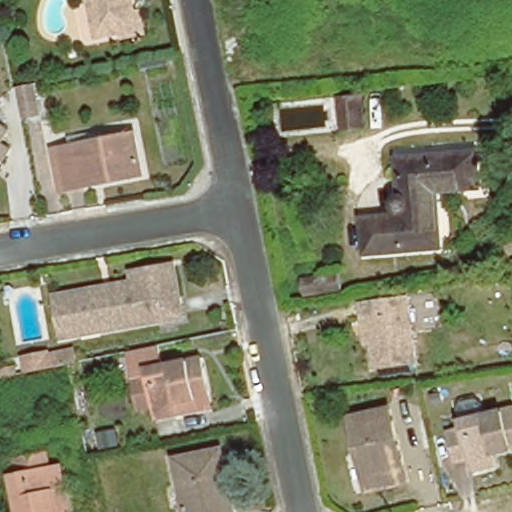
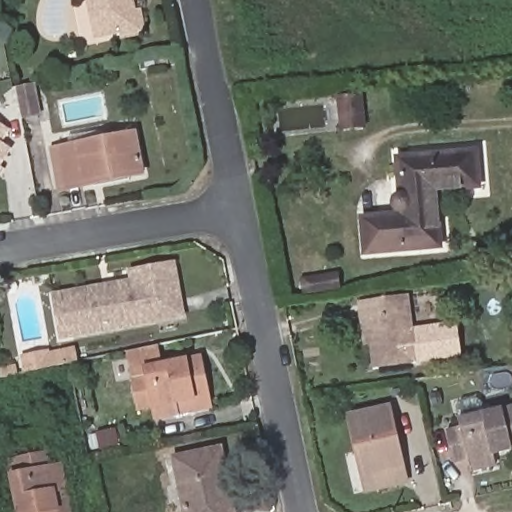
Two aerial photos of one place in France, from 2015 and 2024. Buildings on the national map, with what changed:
unchanged [(85,21),(80,0),(131,0),(124,2),(126,14),(127,16),(134,15),(140,38),(116,43),(115,35),(89,40),(85,21)]
unchanged [(26,83),(32,113),(22,115),(16,116),(13,103),(10,86),(16,85),(26,83)]
unchanged [(337,96),(362,94),(366,128),(341,130),(337,96)]
unchanged [(1,140),(10,147),(0,162),(0,122),(9,128),(1,140)]
unchanged [(104,179),(102,174),(69,180),(61,144),(145,128),(151,164),(136,167),(137,173),(104,179)]
unchanged [(486,182),(442,186),(446,235),(446,242),(369,249),(366,214),(406,209),(406,206),(404,205),(402,203),(401,199),(402,194),(407,189),(403,154),(482,146),(486,182)]
unchanged [(64,294),(133,281),(131,273),(173,264),(183,314),(71,335),(63,337),(54,296),(64,294)]
unchanged [(356,324),(353,307),(402,299),(413,365),(370,373),(366,349),(360,349),(356,324)]
new [(458,322),(461,357),(413,365),(407,328),(458,322)]
unchanged [(185,412),(162,417),(159,404),(145,408),(138,376),(146,374),(141,349),(160,344),(165,365),(205,357),(213,395),(216,406),(185,412)]
unchanged [(26,371),(23,354),(43,350),(49,353),(54,354),(56,365),(26,371)]
unchanged [(429,389),(437,388),(440,402),(432,404),(429,389)]
unchanged [(350,435),(354,434),(350,416),(389,407),(406,482),(374,489),(363,491),(350,435)]
unchanged [(477,471),(474,458),(461,462),(452,431),(467,427),(465,419),(512,407),(512,450),(498,454),(501,464),(477,471)]
unchanged [(113,429),(116,444),(95,449),(91,434),(113,429)]
unchanged [(181,453),(225,443),(240,512),(193,512),(181,453)]
unchanged [(17,474),(14,459),(21,457),(51,451),(55,467),(66,464),(71,488),(76,512),(25,512),(17,474)]

